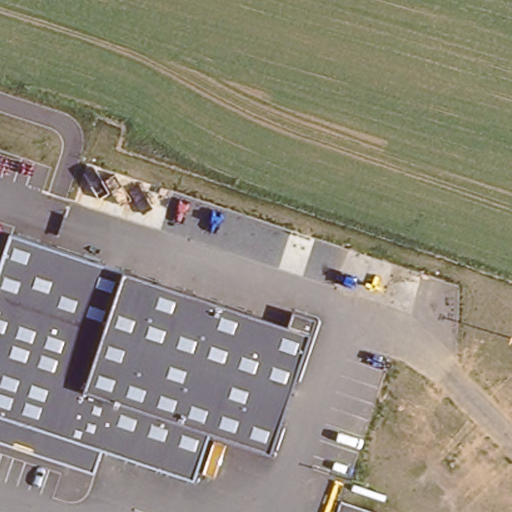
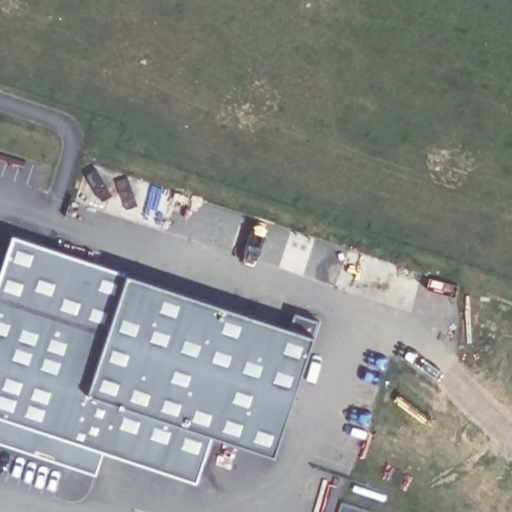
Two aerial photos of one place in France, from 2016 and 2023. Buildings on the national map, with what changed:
unchanged [(287,326),(293,312),(317,319),(310,336),(272,457),(208,436),(196,481),(103,452),(95,475),(0,441),(0,272),(11,235),(125,273),(287,326)]

